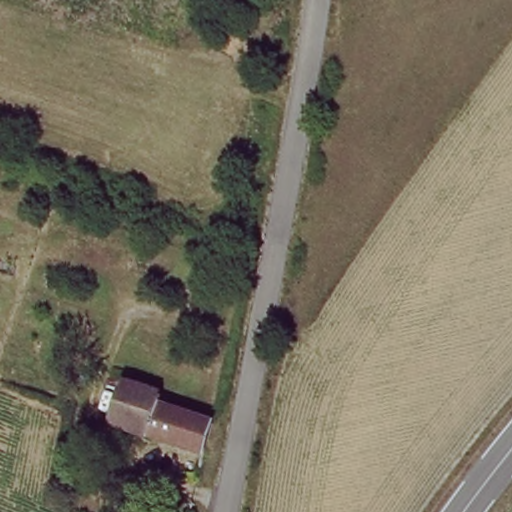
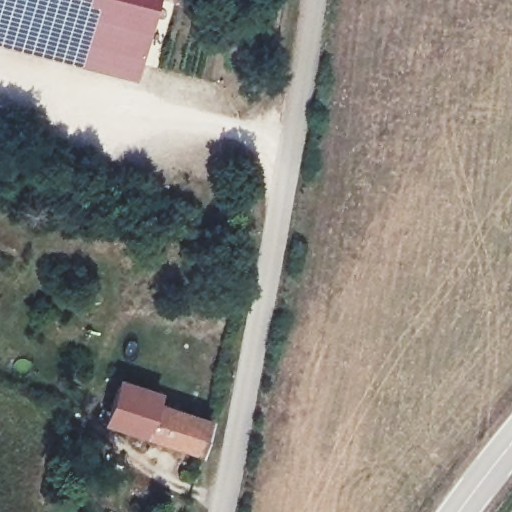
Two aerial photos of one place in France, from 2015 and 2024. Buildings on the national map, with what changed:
new [(0,0),(157,0),(136,80),(0,44),(0,0)]
unchanged [(206,455),(111,420),(124,383),(163,397),(161,404),(212,423),(206,455)]

